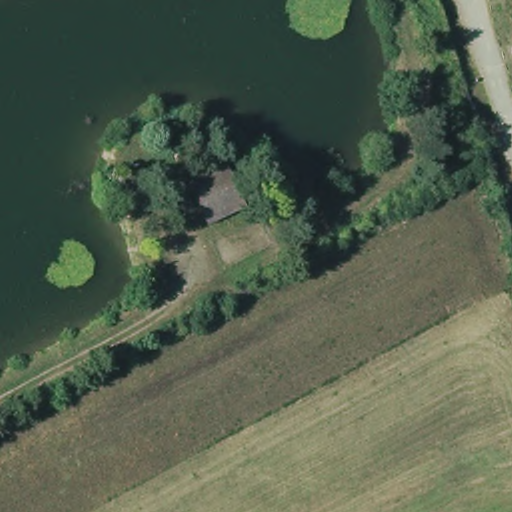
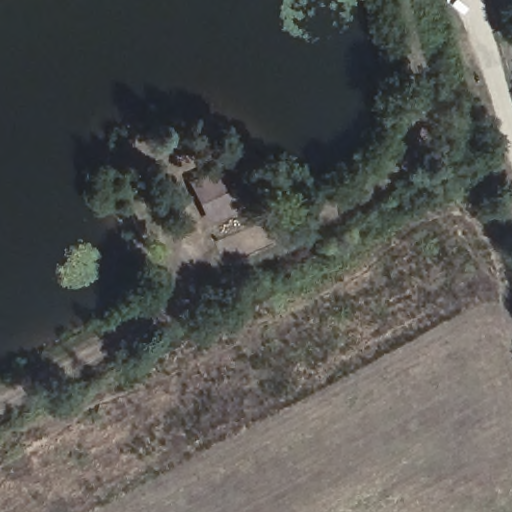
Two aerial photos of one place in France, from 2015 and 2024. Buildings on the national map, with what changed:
unchanged [(186,181),(227,163),(245,208),(207,228),(186,181)]

